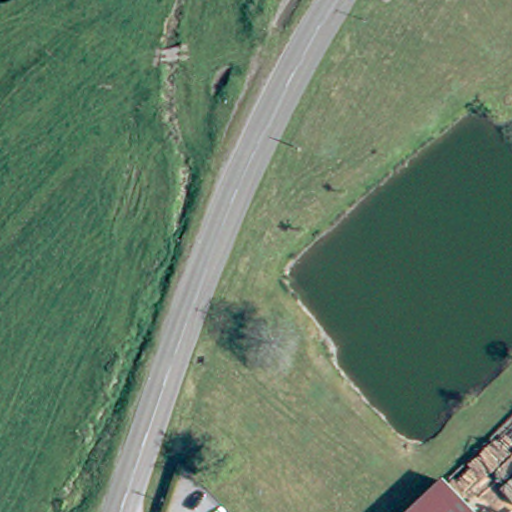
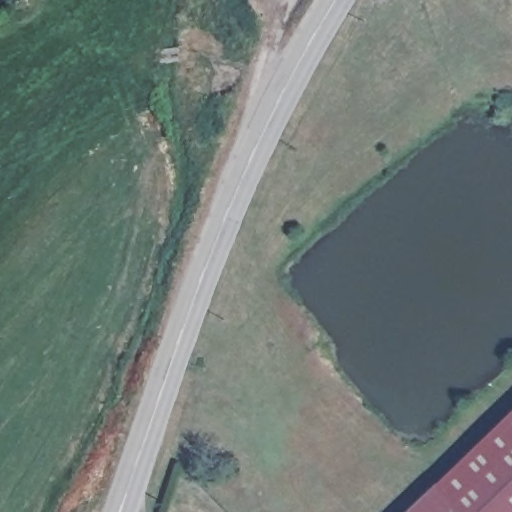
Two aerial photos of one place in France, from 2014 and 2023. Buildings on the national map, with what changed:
new [(512,418),(512,512),(472,512),(446,485),(512,418)]
unchanged [(446,485),(472,512),(418,512),(446,485)]

